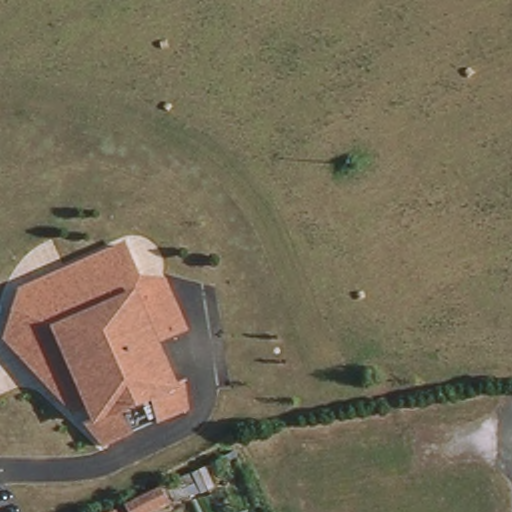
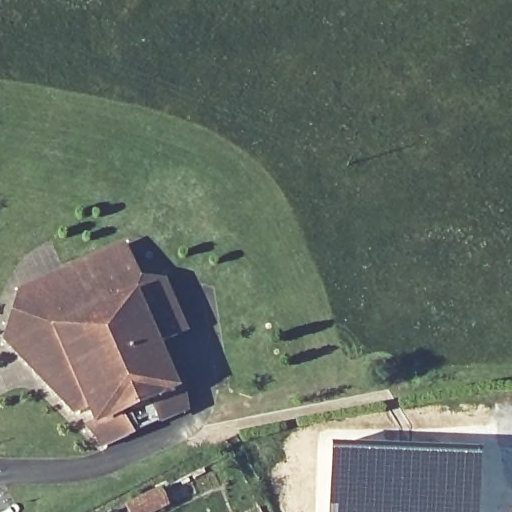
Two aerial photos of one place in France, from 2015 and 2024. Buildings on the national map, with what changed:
unchanged [(157,427),(154,421),(121,436),(125,442),(100,452),(93,442),(97,440),(86,412),(74,417),(76,420),(5,332),(6,331),(9,335),(23,325),(14,304),(55,287),(53,282),(119,252),(138,295),(151,290),(174,341),(149,352),(174,408),(178,398),(181,420),(180,420),(180,418),(169,422),(157,427)]
new [(329,448),(364,450),(397,450),(441,453),(482,453),(480,512),(327,512),(329,448)]
unchanged [(144,497),(177,481),(185,496),(154,512),(129,512),(126,507),(144,497)]

